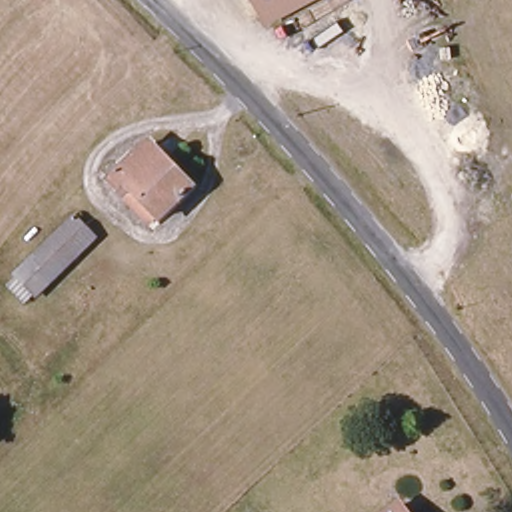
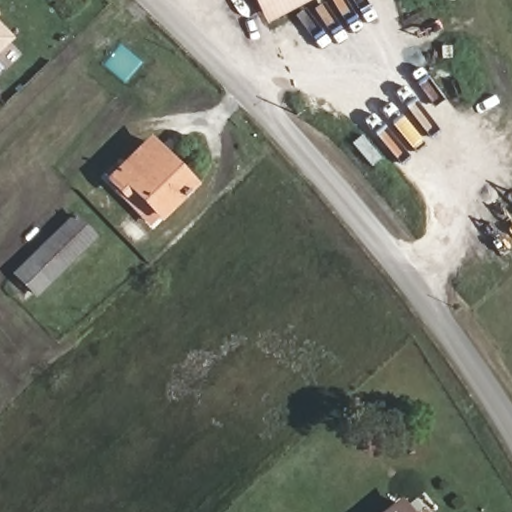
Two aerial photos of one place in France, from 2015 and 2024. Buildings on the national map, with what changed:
unchanged [(258,10),(253,0),(277,0),(258,10)]
unchanged [(265,23),(258,10),(277,0),(308,0),(265,23)]
new [(0,53),(0,23),(15,38),(0,53)]
unchanged [(125,202),(107,183),(150,141),(196,190),(161,223),(157,219),(149,228),(125,202)]
unchanged [(35,296),(15,277),(74,217),(92,237),(35,296)]
unchanged [(411,512),(391,512),(403,502),(411,512)]

